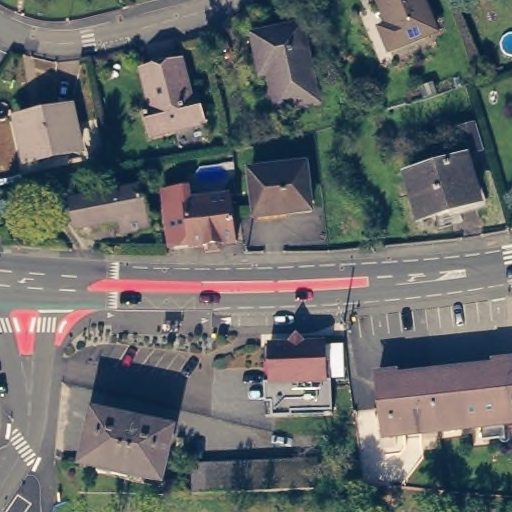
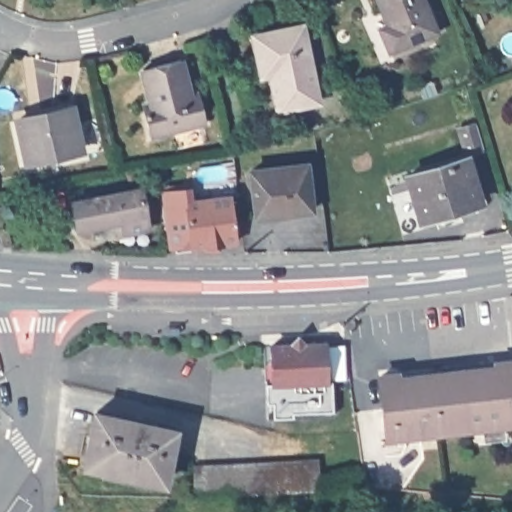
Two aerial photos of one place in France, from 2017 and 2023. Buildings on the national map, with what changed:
unchanged [(387,39),(377,15),(385,12),(380,0),(423,0),(432,21),(387,39)]
unchanged [(305,18),(318,92),(280,99),(273,64),(265,65),(257,27),(305,18)]
unchanged [(178,60),(187,95),(197,92),(205,121),(150,134),(143,106),(150,104),(142,70),(178,60)]
unchanged [(76,97),(85,137),(32,147),(23,106),(76,97)]
unchanged [(472,125),(478,148),(461,153),(453,129),(471,123),(472,125)]
unchanged [(307,159),(313,205),(258,213),(251,167),(307,159)]
unchanged [(459,160),(472,201),(415,217),(404,175),(459,160)]
unchanged [(97,212),(82,215),(75,189),(145,175),(152,214),(128,218),(100,224),(97,212)]
unchanged [(190,198),(190,195),(236,191),(240,235),(223,237),(223,243),(208,245),(207,240),(195,241),(195,237),(175,240),(172,200),(190,198)]
unchanged [(300,342),(307,335),(314,341),(335,340),(335,379),(280,380),(280,342),(300,342)]
unchanged [(499,362),(498,358),(512,357),(512,419),(442,426),(439,393),(437,370),(499,362)]
unchanged [(439,393),(442,426),(390,432),(385,370),(402,369),(402,372),(437,370),(439,393)]
unchanged [(176,425),(165,476),(87,456),(100,405),(176,425)]
unchanged [(195,460),(319,459),(320,485),(312,487),(196,490),(195,460)]

